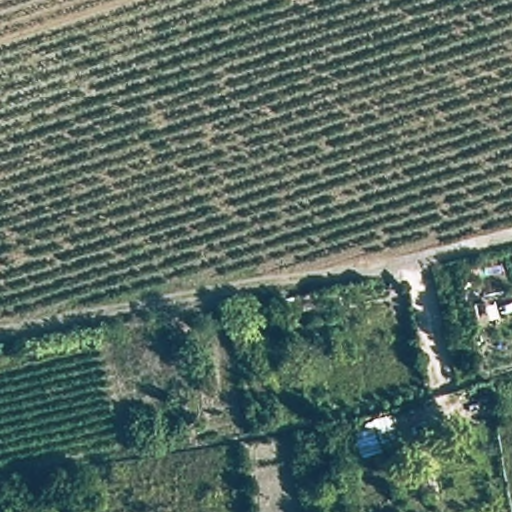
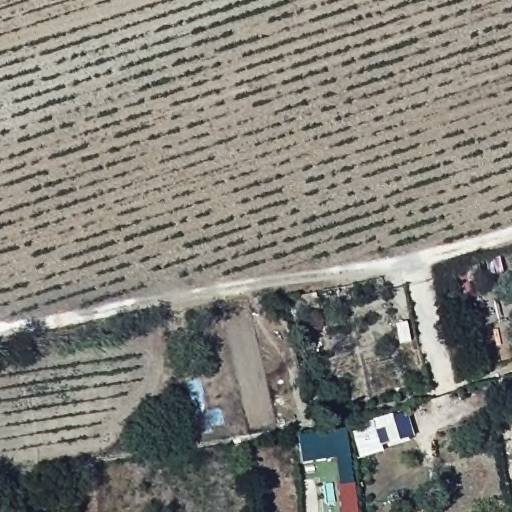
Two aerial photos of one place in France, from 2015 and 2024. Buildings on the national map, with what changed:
unchanged [(321,314),(282,320),(279,304),(316,298),(321,314)]

